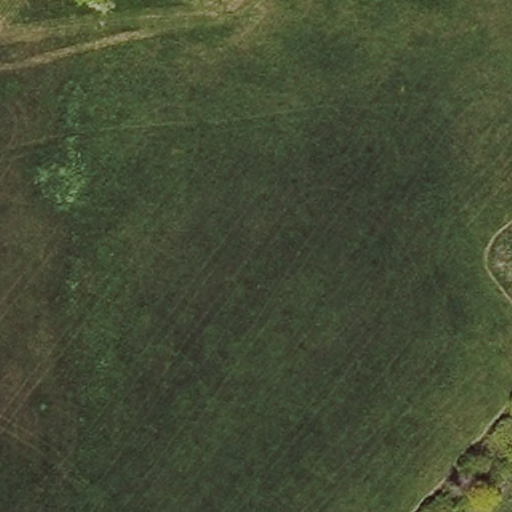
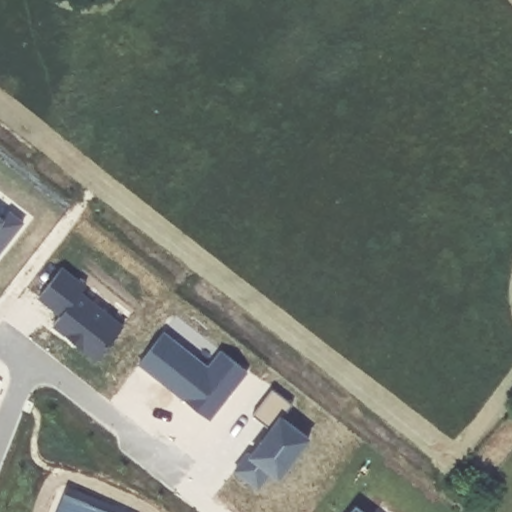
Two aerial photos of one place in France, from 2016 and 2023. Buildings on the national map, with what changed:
new [(14,209),(29,220),(0,256),(0,210),(8,216),(14,209)]
new [(68,265),(90,283),(85,290),(128,323),(103,355),(59,322),(68,312),(45,294),(68,265)]
new [(168,330),(213,364),(225,347),(252,368),(213,419),(141,365),(168,330)]
new [(253,455),(256,458),(276,432),(258,418),(278,392),(297,408),(288,420),(314,440),(284,480),(276,473),(262,491),(239,473),(253,455)]
new [(363,512),(351,512),(356,506),(363,512)]

